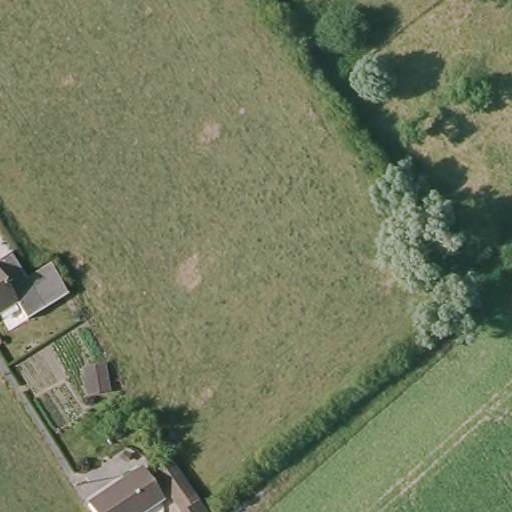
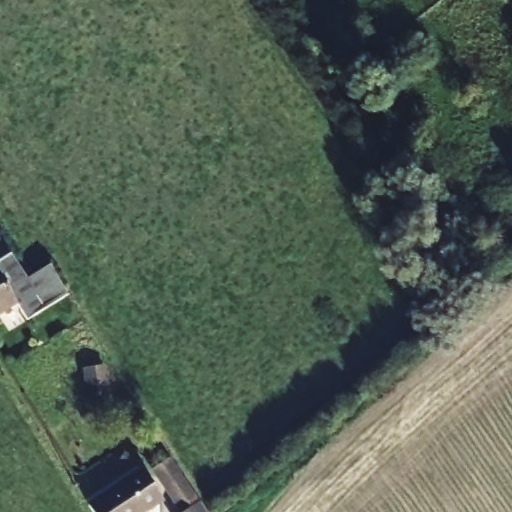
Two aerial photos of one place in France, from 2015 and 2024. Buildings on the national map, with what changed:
unchanged [(26,279),(50,264),(67,295),(26,320),(15,302),(0,312),(0,260),(10,253),(26,279)]
unchanged [(173,464),(184,480),(203,508),(206,512),(182,512),(173,499),(168,491),(156,474),(173,464)]
unchanged [(96,509),(148,474),(148,476),(151,479),(167,504),(155,512),(94,512),(93,512),(96,509)]

